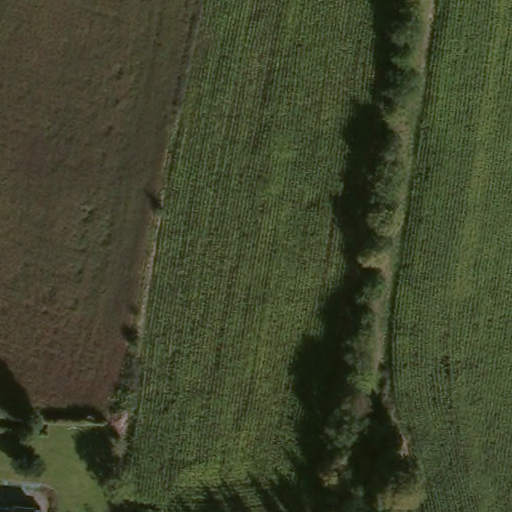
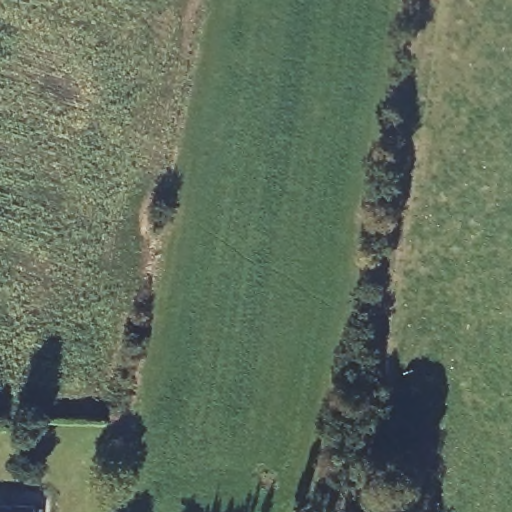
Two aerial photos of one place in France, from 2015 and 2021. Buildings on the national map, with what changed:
unchanged [(31,509),(31,512),(0,512),(0,507),(31,509)]

